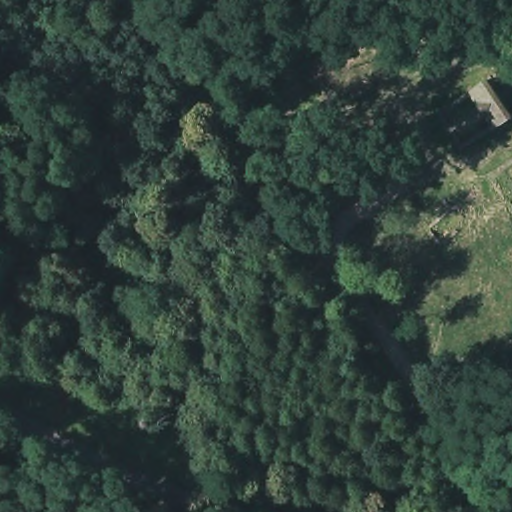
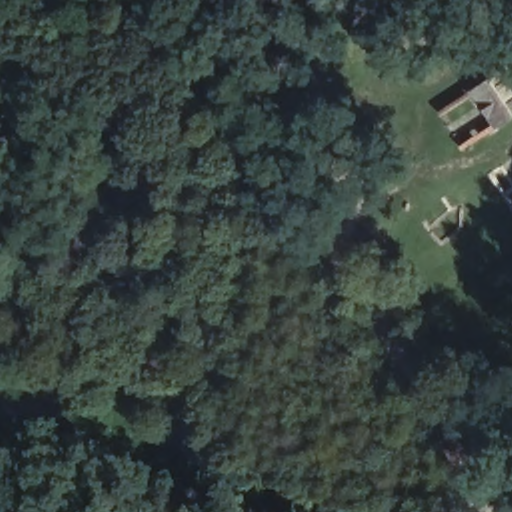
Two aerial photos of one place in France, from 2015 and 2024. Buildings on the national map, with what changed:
unchanged [(493,74),(512,108),(512,123),(495,130),(469,91),(493,74)]

